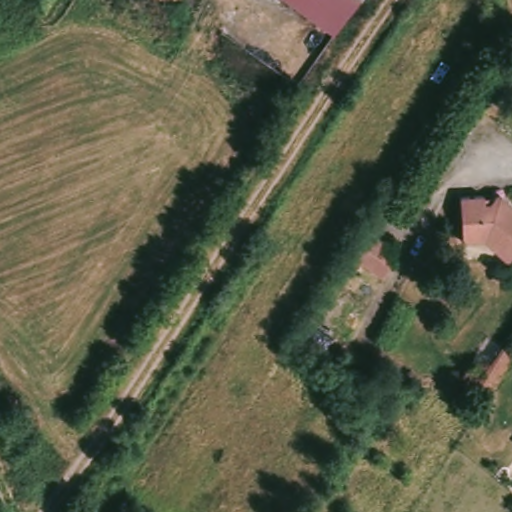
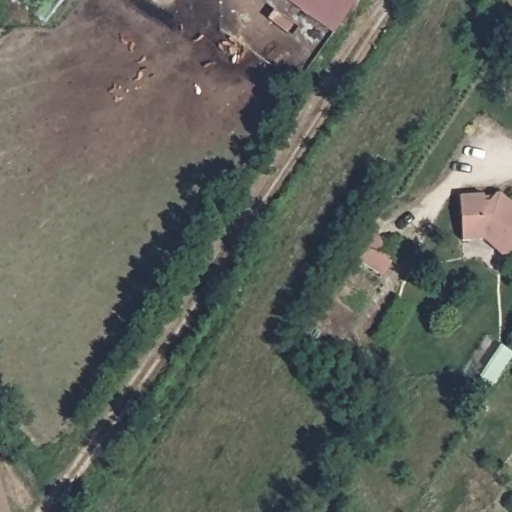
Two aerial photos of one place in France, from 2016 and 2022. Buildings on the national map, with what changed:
unchanged [(287,0),(356,0),(332,33),(287,0)]
unchanged [(512,205),(512,257),(508,262),(483,240),(462,241),(459,196),(482,195),(496,194),(500,194),(512,205)]
unchanged [(382,276),(352,257),(368,232),(390,245),(398,251),(390,263),(382,276)]
unchanged [(490,393),(477,384),(502,347),(512,353),(512,359),(490,393)]

